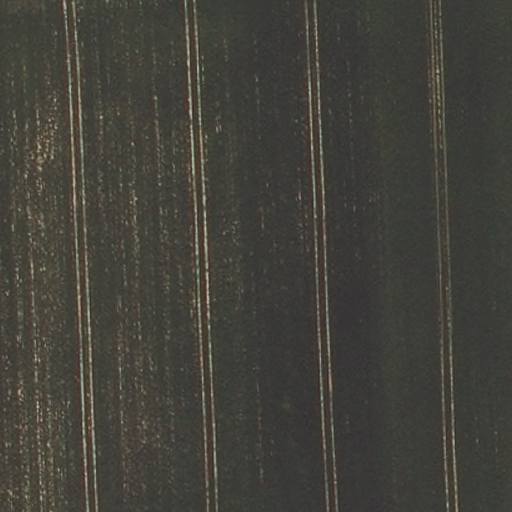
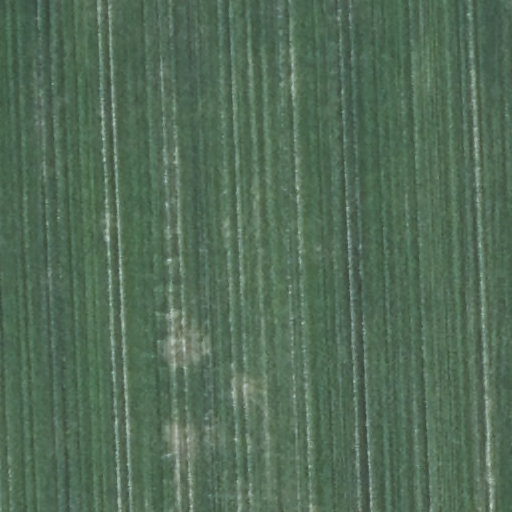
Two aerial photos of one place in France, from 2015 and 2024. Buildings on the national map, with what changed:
[]

